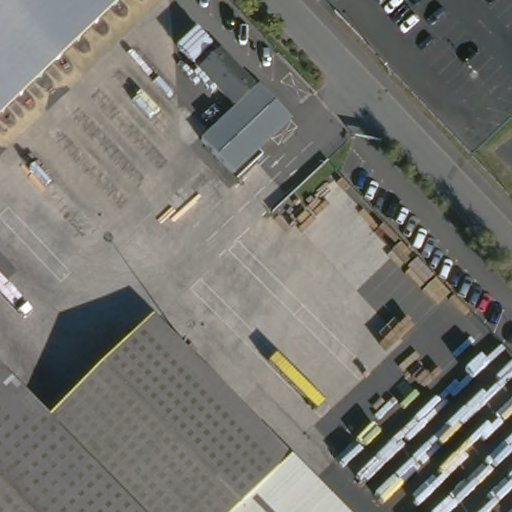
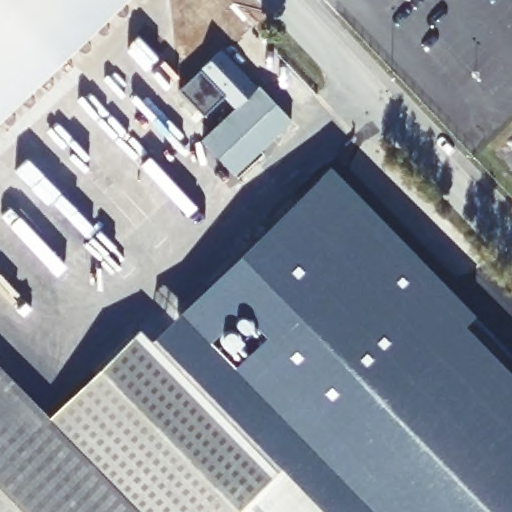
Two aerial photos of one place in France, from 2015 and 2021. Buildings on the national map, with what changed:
unchanged [(0,111),(0,0),(116,0),(0,111)]
unchanged [(236,111),(200,72),(220,54),(256,93),(259,90),(294,128),(237,180),(202,142),(236,111)]
new [(166,326),(321,176),(512,372),(512,512),(334,512),(305,482),(285,461),(264,439),(252,451),(251,452),(137,334),(154,316),(166,326)]
unchanged [(63,405),(137,334),(251,452),(264,439),(285,461),(305,482),(334,512),(0,512),(0,371),(47,420),(63,405)]

